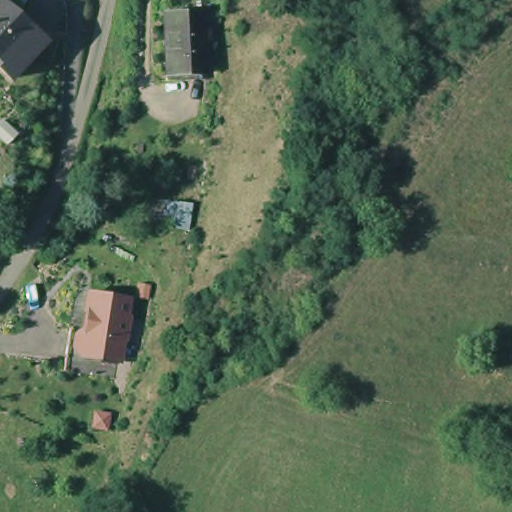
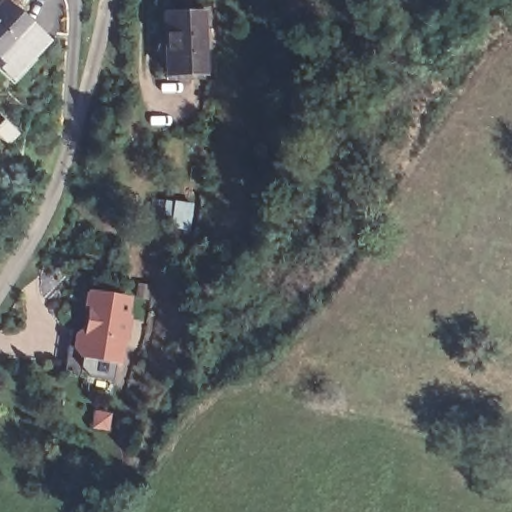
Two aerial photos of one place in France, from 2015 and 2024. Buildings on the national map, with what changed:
unchanged [(9,59),(0,51),(0,0),(11,0),(40,26),(9,59)]
unchanged [(207,14),(209,79),(165,80),(163,15),(207,14)]
unchanged [(87,291),(130,295),(122,360),(81,352),(74,351),(87,291)]

